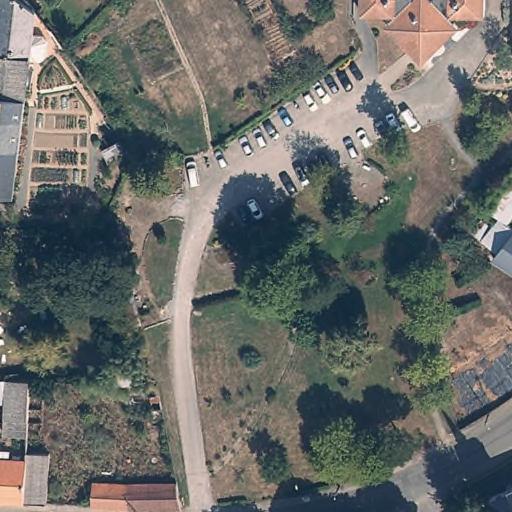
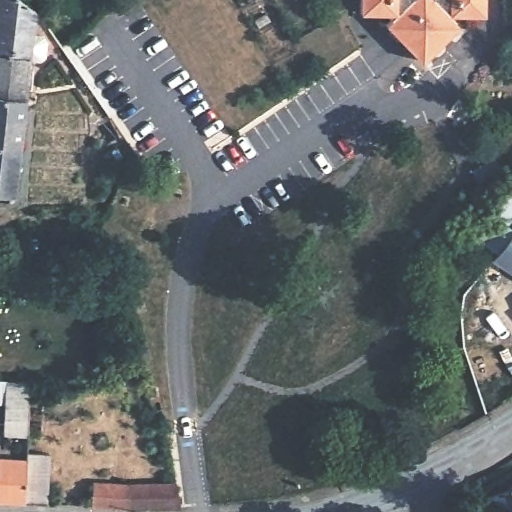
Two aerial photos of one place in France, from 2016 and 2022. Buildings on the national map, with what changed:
unchanged [(41,65),(35,70),(25,69),(20,109),(0,106),(0,0),(9,0),(19,7),(23,10),(31,20),(28,44),(38,45),(42,51),(41,65)]
unchanged [(392,30),(392,20),(365,16),(365,0),(430,0),(432,2),(436,0),(482,0),(481,19),(452,21),(459,30),(421,62),(392,30)]
unchanged [(8,206),(3,205),(0,205),(0,106),(20,109),(8,206)]
unchanged [(493,264),(498,258),(472,237),(482,225),(492,233),(500,223),(490,216),(508,191),(512,194),(512,193),(512,223),(507,229),(512,232),(512,276),(493,264)]
unchanged [(132,258),(140,280),(130,283),(154,362),(144,365),(112,265),(132,258)]
unchanged [(117,369),(145,370),(149,384),(117,383),(117,369)]
unchanged [(28,435),(5,434),(6,402),(0,402),(0,379),(30,380),(28,435)]
unchanged [(0,506),(0,454),(11,455),(10,464),(27,465),(25,507),(0,506)]
unchanged [(27,457),(50,458),(47,509),(25,507),(27,465),(27,457)]
unchanged [(177,488),(181,512),(101,512),(92,511),(94,487),(128,489),(177,488)]
unchanged [(504,498),(502,495),(506,493),(507,496),(512,494),(512,512),(488,512),(486,506),(504,498)]

